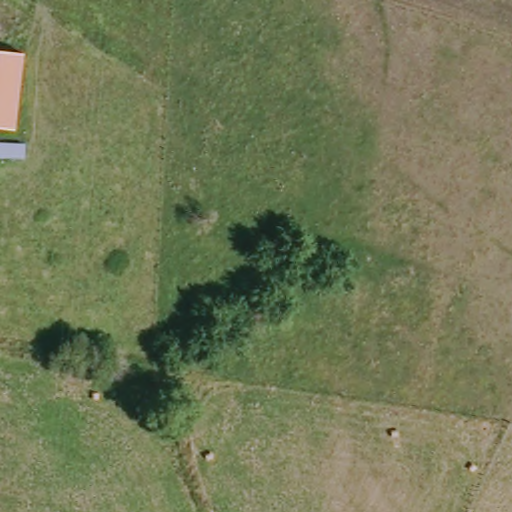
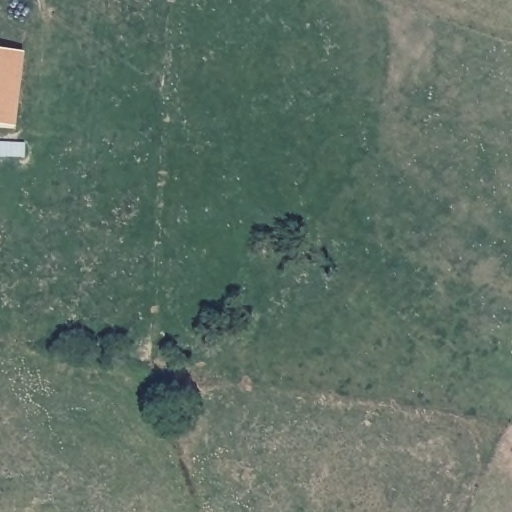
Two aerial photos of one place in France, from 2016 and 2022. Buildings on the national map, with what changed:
unchanged [(0,129),(0,51),(20,52),(12,130),(0,129)]

